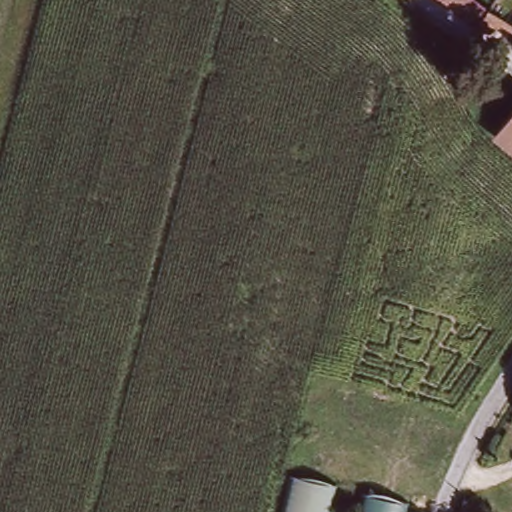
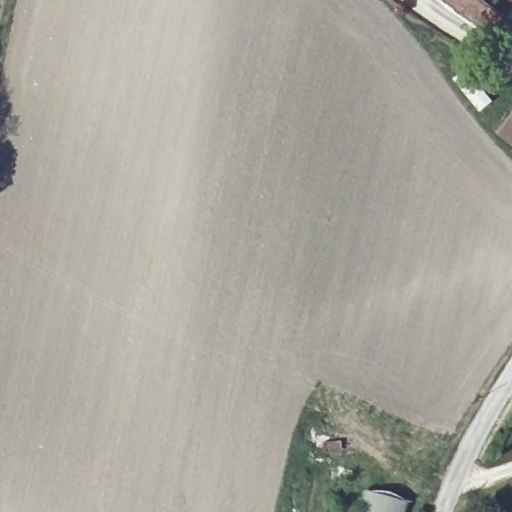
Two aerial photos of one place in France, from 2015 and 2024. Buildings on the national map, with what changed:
unchanged [(440,0),(475,0),(488,10),(503,23),(491,40),(476,29),(454,11),(440,0)]
unchanged [(497,140),(512,121),(512,152),(497,140)]
demolished [(295,475),(338,482),(330,512),(286,512),(295,475)]
unchanged [(368,498),(409,505),(408,512),(365,512),(368,498)]

